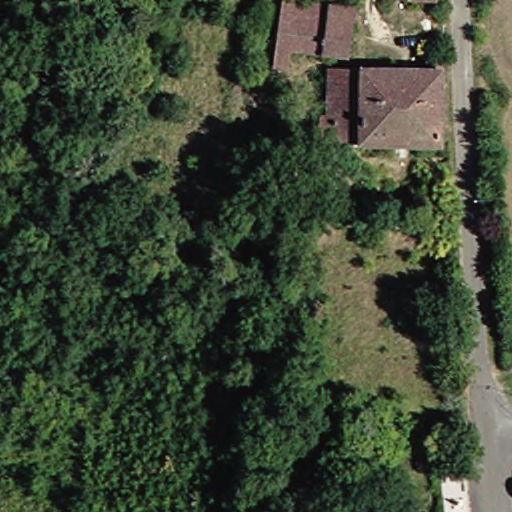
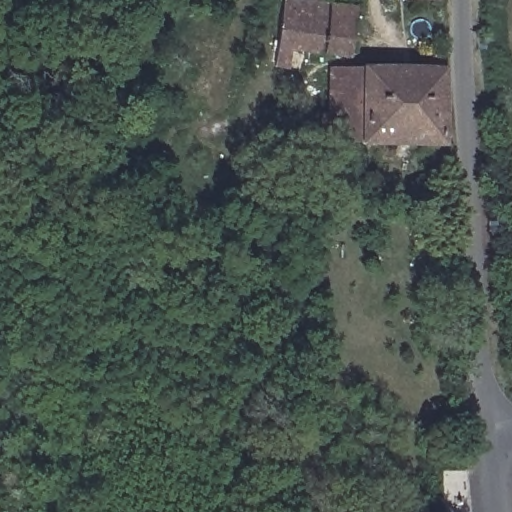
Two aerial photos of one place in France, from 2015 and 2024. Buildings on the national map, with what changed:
unchanged [(276,47),(283,0),(303,0),(330,4),(323,54),(291,49),(288,68),(274,66),(276,47)]
unchanged [(354,7),(347,57),(323,54),(330,4),(354,7)]
unchanged [(448,57),(448,70),(447,145),(366,145),(366,142),(339,141),(339,140),(328,140),(328,130),(327,130),(328,114),(335,114),(335,68),(433,70),(433,57),(448,57)]

